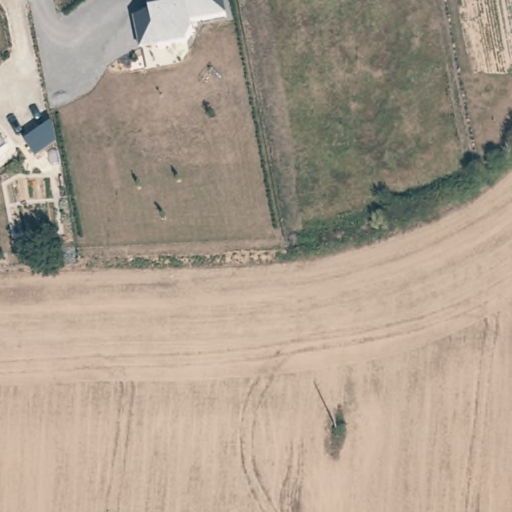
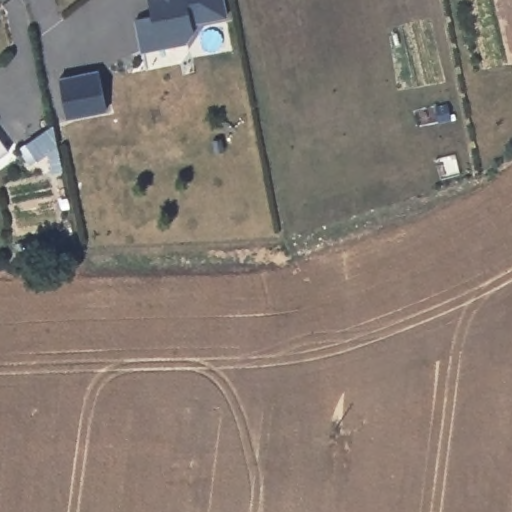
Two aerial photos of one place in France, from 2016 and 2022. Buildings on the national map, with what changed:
unchanged [(192,26),(194,35),(185,47),(141,52),(136,19),(152,17),(149,0),(223,0),(227,17),(192,26)]
new [(65,119),(57,75),(98,68),(106,111),(65,119)]
unchanged [(27,143),(55,124),(57,147),(38,160),(27,143)]
unchanged [(0,155),(0,136),(9,148),(0,155)]

